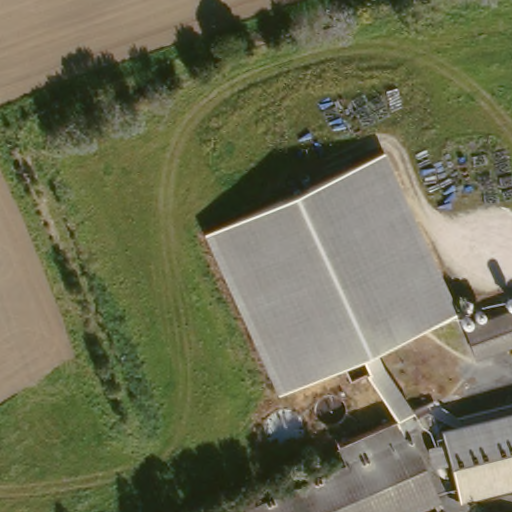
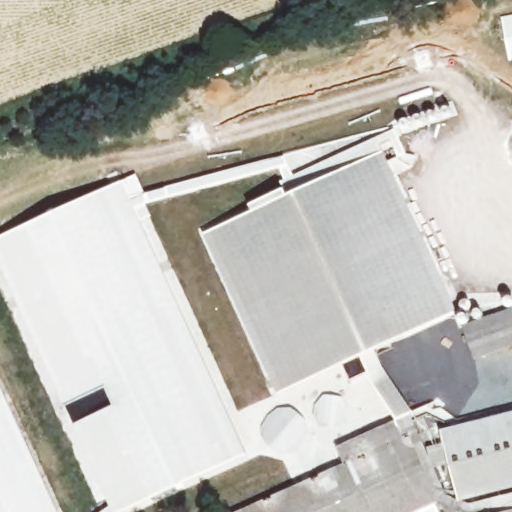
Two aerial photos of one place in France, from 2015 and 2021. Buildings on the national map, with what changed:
unchanged [(379,151),(456,314),(276,395),(203,231),(379,151)]
new [(124,512),(115,512),(0,265),(0,238),(122,182),(248,453),(124,512)]
unchanged [(512,344),(474,355),(465,323),(512,311),(512,344)]
new [(60,512),(0,512),(0,383),(60,512)]
unchanged [(445,432),(512,415),(512,487),(445,512),(445,432)]
unchanged [(438,500),(412,512),(239,512),(343,465),(335,446),(406,417),(438,500)]
unchanged [(512,512),(473,512),(512,502),(512,512)]

